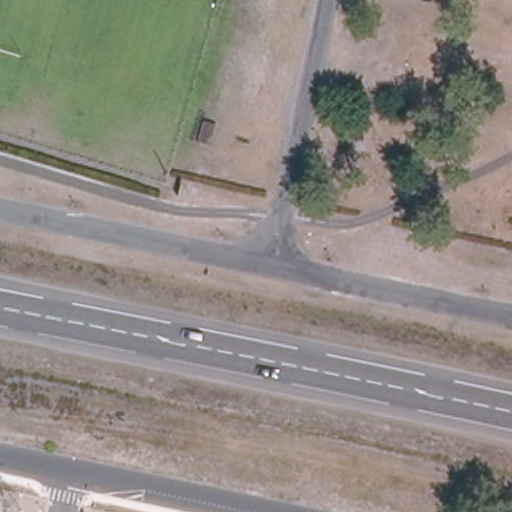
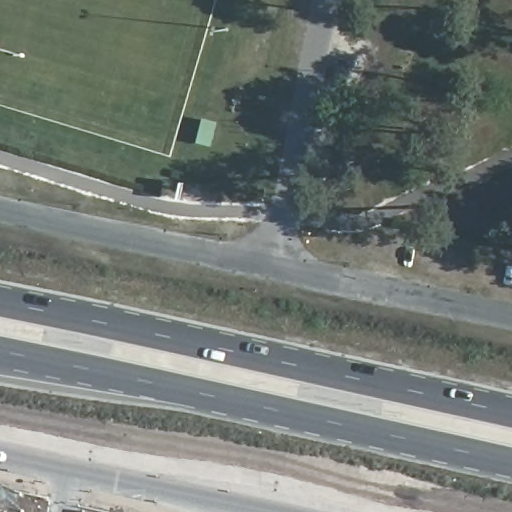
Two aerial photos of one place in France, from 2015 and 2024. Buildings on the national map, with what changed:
[]

